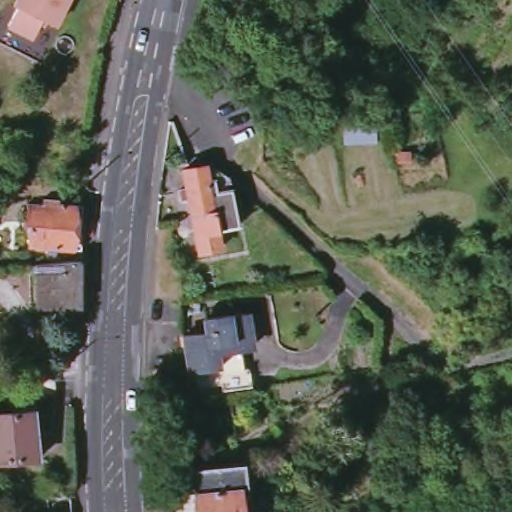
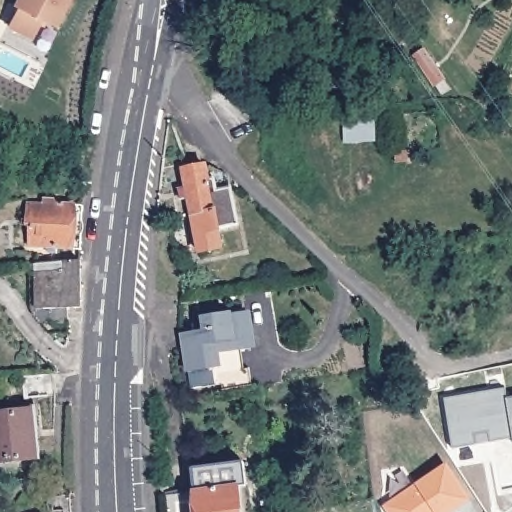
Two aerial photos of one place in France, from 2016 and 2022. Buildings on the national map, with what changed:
unchanged [(41,19),(29,36),(7,21),(19,4),(17,2),(18,0),(72,0),(53,27),(41,19)]
unchanged [(342,117),(382,115),(382,145),(344,143),(342,117)]
unchanged [(208,167),(210,181),(230,178),(237,229),(216,231),(219,249),(199,251),(190,196),(182,198),(180,188),(188,187),(185,172),(192,170),(208,167)]
unchanged [(57,186),(60,193),(84,190),(82,233),(36,239),(31,197),(44,189),(57,186)]
unchanged [(82,244),(82,292),(60,295),(62,308),(37,311),(31,251),(82,244)]
unchanged [(205,332),(205,317),(254,314),(258,351),(245,354),(247,370),(224,373),(225,382),(195,388),(184,335),(205,332)]
new [(512,397),(512,438),(490,441),(489,431),(475,433),(477,443),(453,447),(445,397),(502,388),(504,398),(512,397)]
unchanged [(0,412),(37,412),(37,461),(0,460),(0,412)]
new [(453,512),(389,512),(386,507),(447,467),(470,501),(453,512)]
unchanged [(246,470),(250,512),(168,512),(167,498),(197,495),(197,474),(246,470)]
new [(84,492),(85,511),(77,512),(56,512),(54,496),(84,492)]

